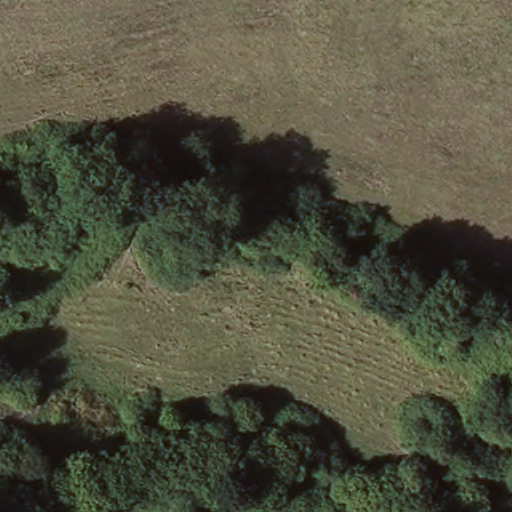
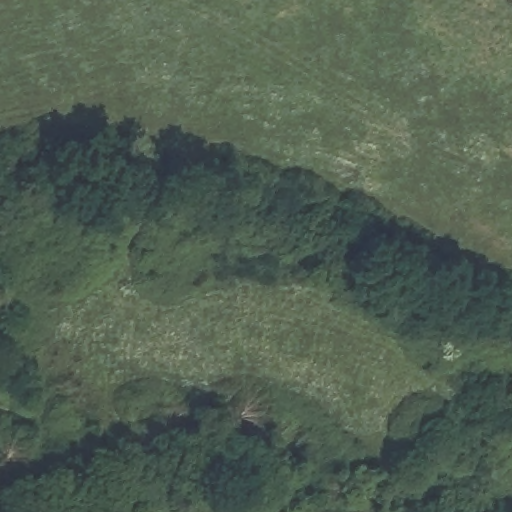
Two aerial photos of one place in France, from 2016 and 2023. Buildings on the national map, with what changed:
[]

